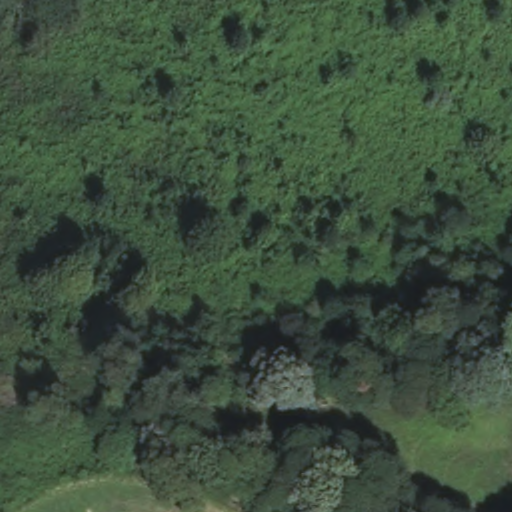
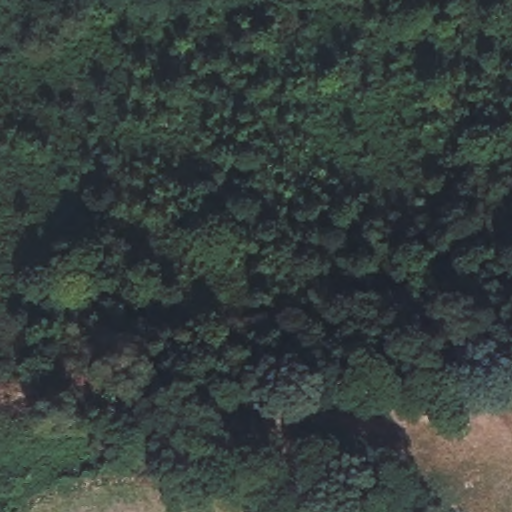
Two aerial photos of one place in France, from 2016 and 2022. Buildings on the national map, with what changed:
[]

